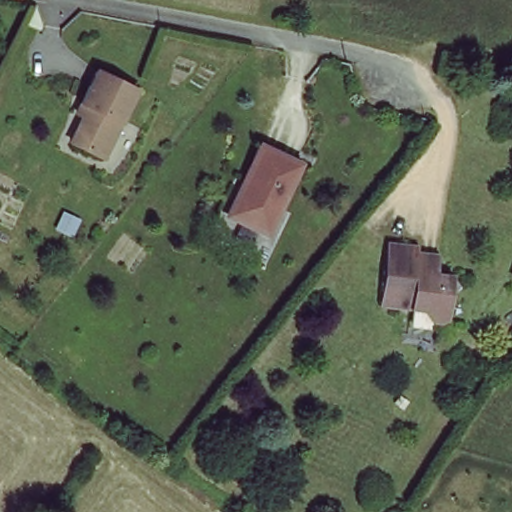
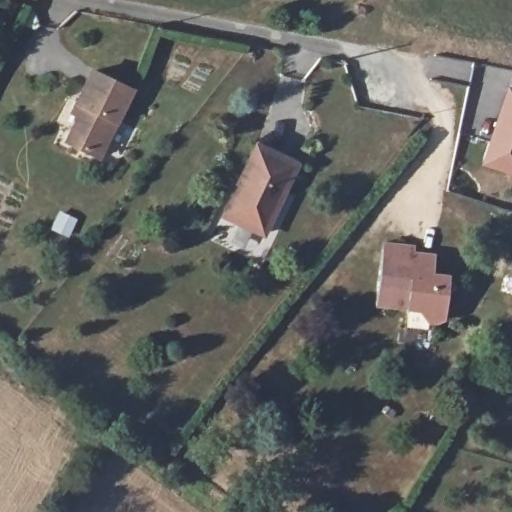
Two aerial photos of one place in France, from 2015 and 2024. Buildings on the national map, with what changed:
unchanged [(134,93),(103,160),(68,144),(80,119),(75,116),(80,103),(94,74),(134,93)]
new [(481,165),(506,84),(512,86),(512,175),(481,165)]
unchanged [(232,219),(249,183),(244,180),(260,147),(299,166),(267,235),(232,219)]
unchanged [(441,283),(452,284),(457,296),(446,302),(444,324),(434,329),(426,329),(418,318),(376,314),(381,258),(382,249),(415,253),(415,261),(436,263),(434,286),(435,286),(441,283)]

